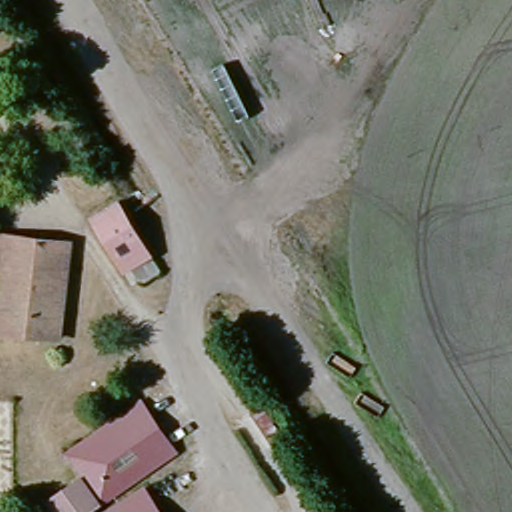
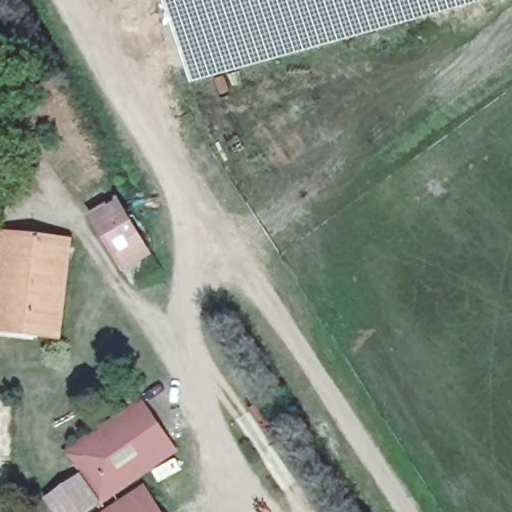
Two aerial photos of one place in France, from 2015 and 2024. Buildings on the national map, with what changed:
new [(193,81),(171,0),(483,0),(193,81)]
unchanged [(157,245),(135,257),(106,209),(128,196),(157,245)]
unchanged [(62,341),(0,329),(0,308),(5,272),(0,271),(0,240),(73,254),(62,341)]
unchanged [(81,485),(66,462),(145,412),(174,457),(142,478),(96,507),(81,485)]
unchanged [(60,512),(54,502),(81,485),(96,507),(142,478),(146,485),(152,494),(164,512),(60,512)]

